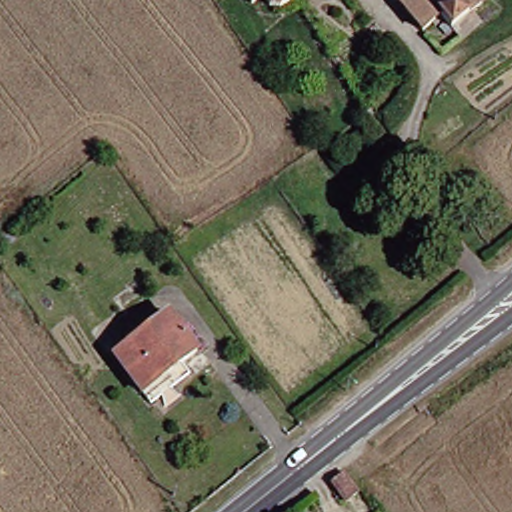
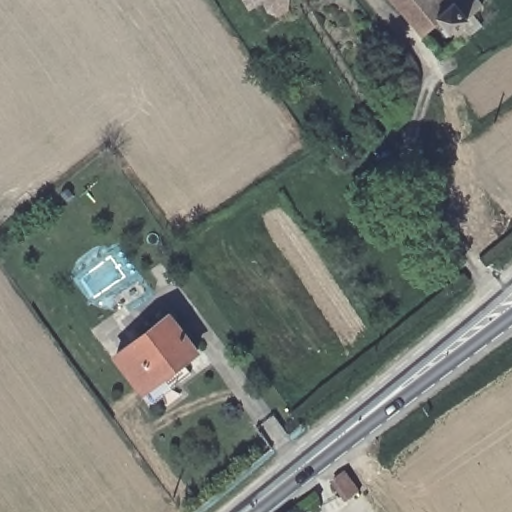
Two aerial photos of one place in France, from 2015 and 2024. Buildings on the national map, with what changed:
unchanged [(240,0),(254,0),(244,6),(240,0)]
unchanged [(275,13),(263,9),(260,0),(284,0),(283,8),(275,13)]
unchanged [(445,32),(434,19),(416,34),(388,0),(469,0),(475,7),(466,15),(476,27),(455,45),(445,32)]
unchanged [(142,400),(133,389),(105,352),(160,310),(188,347),(172,359),(181,370),(142,400)]
unchanged [(338,488),(351,478),(359,490),(366,499),(353,508),(338,488)]

